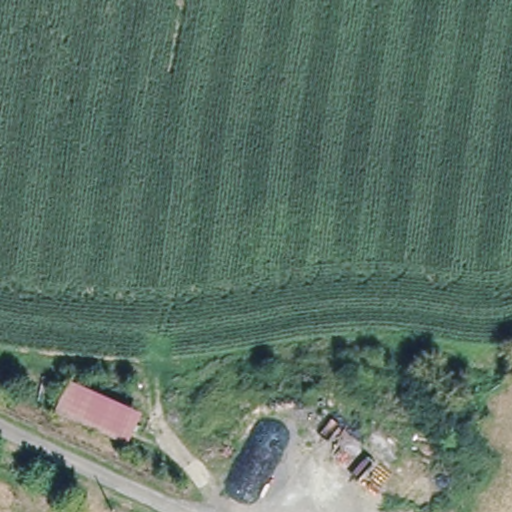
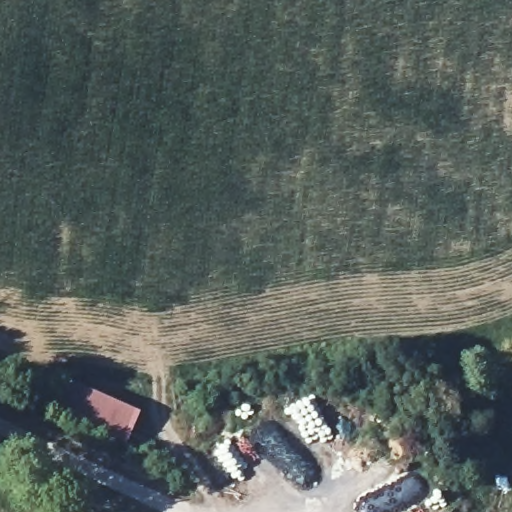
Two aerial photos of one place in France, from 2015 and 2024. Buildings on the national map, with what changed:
unchanged [(79,374),(146,408),(126,447),(60,412),(79,374)]

